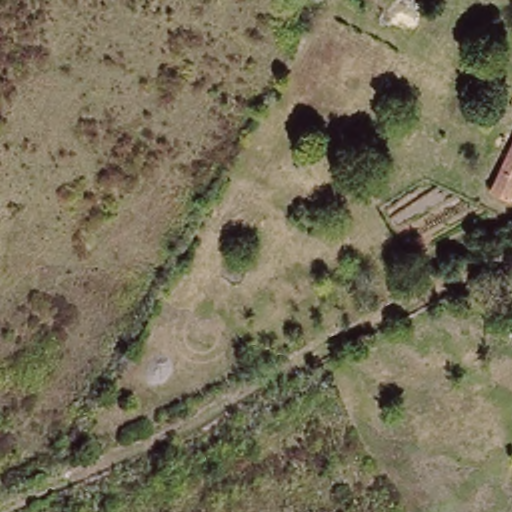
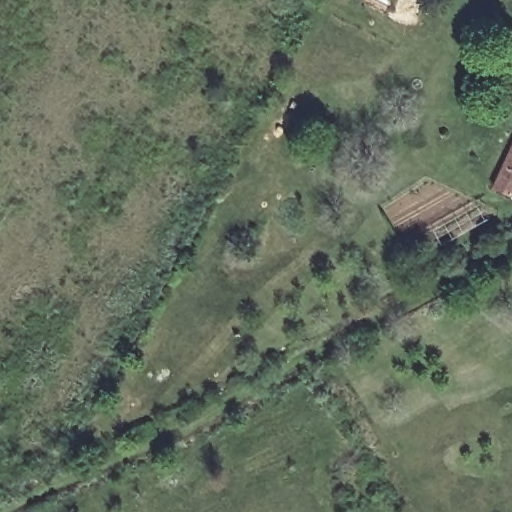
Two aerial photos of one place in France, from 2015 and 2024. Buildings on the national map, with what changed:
unchanged [(512,145),(512,189),(497,185),(512,145)]

